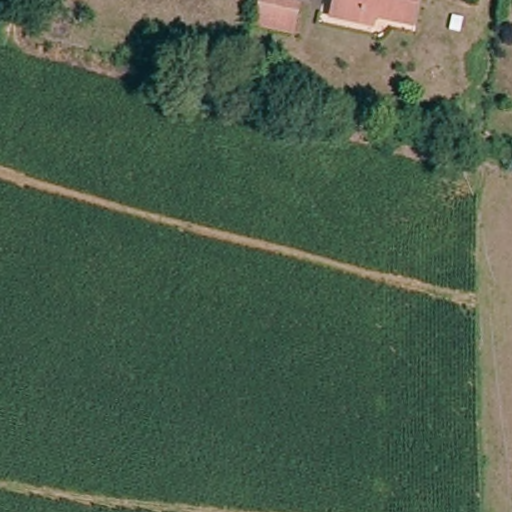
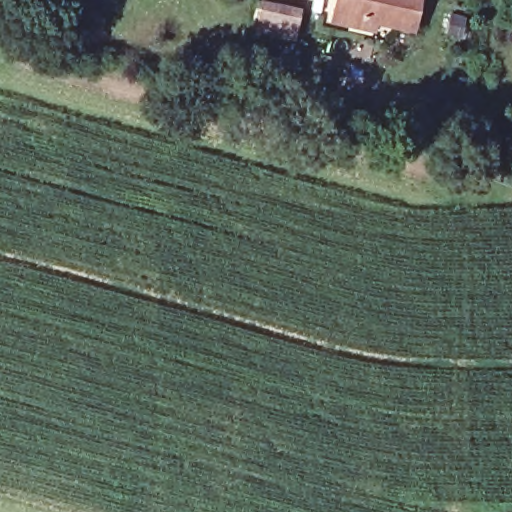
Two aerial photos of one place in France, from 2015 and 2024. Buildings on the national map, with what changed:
unchanged [(415,25),(378,15),(376,23),(338,14),(341,0),(421,0),(415,25)]
unchanged [(299,11),(294,34),(260,25),(264,4),(299,11)]

